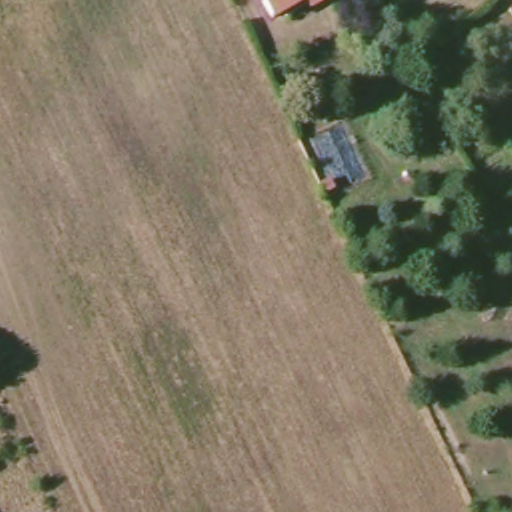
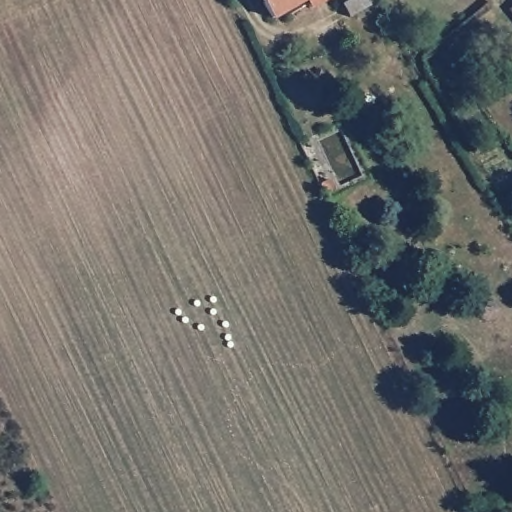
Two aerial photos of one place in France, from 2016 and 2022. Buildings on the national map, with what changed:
unchanged [(312,6),(291,18),(287,13),(277,19),(266,0),(329,0),(314,9),(312,6)]
unchanged [(323,185),(331,181),(335,190),(327,194),(323,185)]

